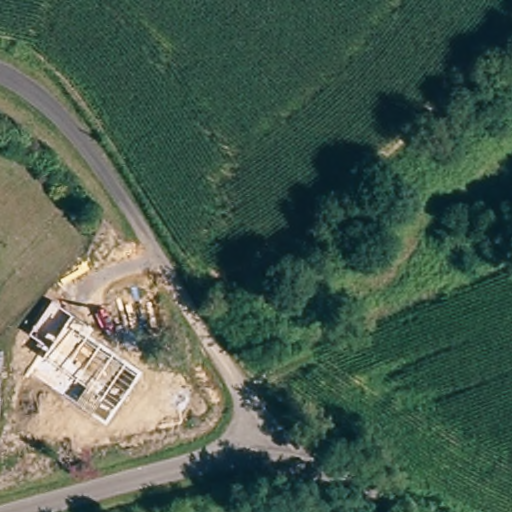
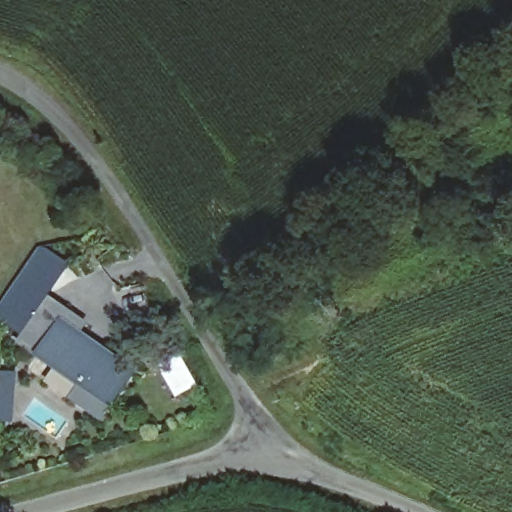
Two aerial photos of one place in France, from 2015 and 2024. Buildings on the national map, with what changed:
new [(39,248),(48,249),(73,266),(52,296),(52,297),(25,337),(0,322),(0,306),(39,248)]
new [(87,335),(143,373),(117,412),(107,426),(76,403),(84,389),(40,359),(19,346),(52,297),(92,326),(87,335)]
new [(18,372),(15,424),(0,422),(0,372),(18,372)]

